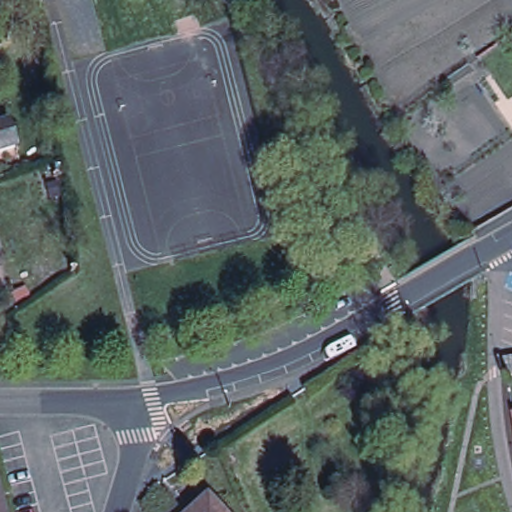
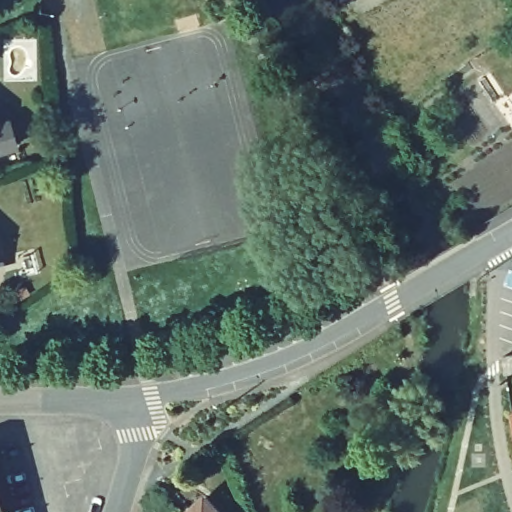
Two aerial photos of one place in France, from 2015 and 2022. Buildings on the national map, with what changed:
unchanged [(19,147),(0,153),(0,121),(11,118),(19,147)]
unchanged [(507,375),(505,359),(512,358),(512,375),(507,375)]
unchanged [(207,496),(222,512),(190,512),(207,496)]
unchanged [(0,507),(1,512),(0,512),(0,507)]

